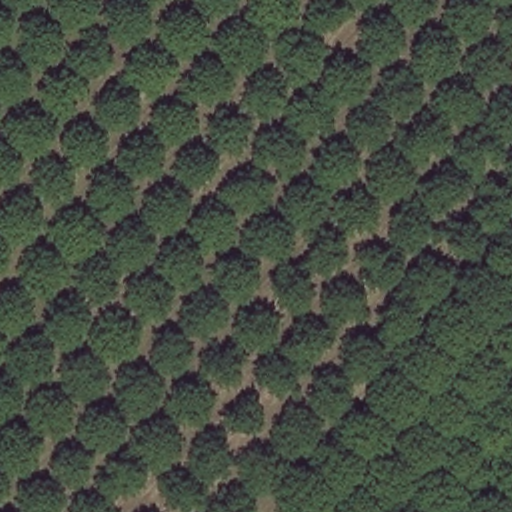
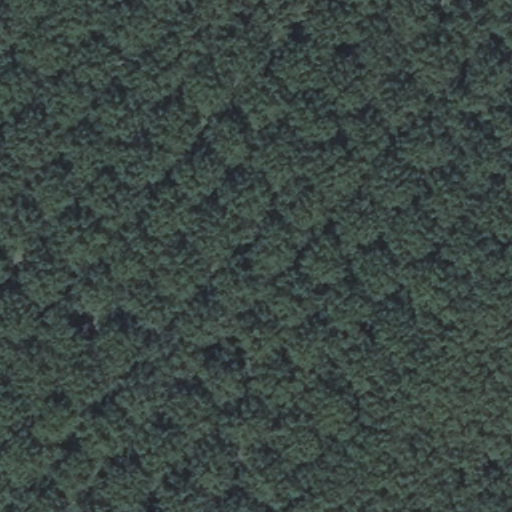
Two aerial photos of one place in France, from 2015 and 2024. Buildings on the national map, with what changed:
[]

